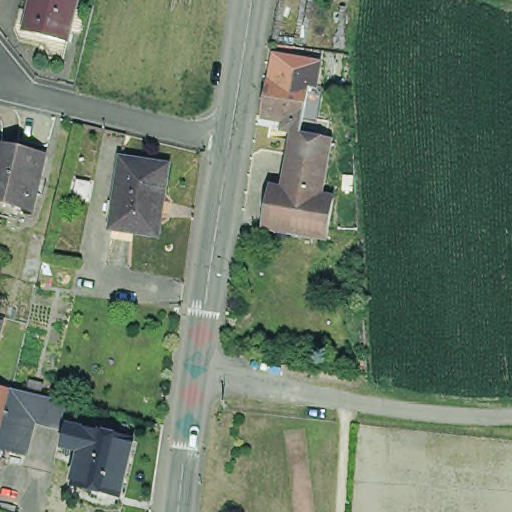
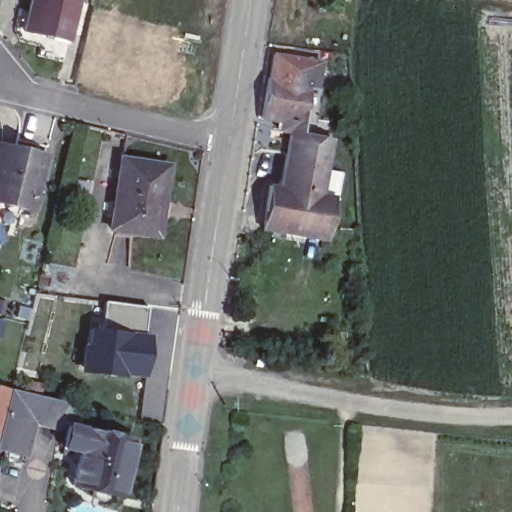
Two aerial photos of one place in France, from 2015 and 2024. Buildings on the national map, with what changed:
unchanged [(28,30),(36,0),(81,0),(71,41),(28,30)]
unchanged [(317,89),(278,82),(282,58),(328,68),(324,92),(316,91),(317,89)]
unchanged [(291,239),(272,236),(274,226),(280,191),(289,192),(299,138),(289,136),(289,133),(287,133),(289,125),(271,122),(278,82),(317,89),(316,91),(309,129),(308,140),(341,145),(331,200),(341,202),(335,237),(334,246),(291,239)]
unchanged [(42,194),(36,193),(32,209),(0,202),(0,144),(45,154),(40,178),(46,179),(42,194)]
unchanged [(166,164),(154,235),(108,227),(118,157),(166,164)]
new [(149,308),(146,337),(150,337),(144,386),(85,377),(89,331),(104,332),(107,304),(149,308)]
new [(9,387),(0,429),(0,386),(9,387)]
unchanged [(65,431),(37,424),(28,459),(0,452),(0,450),(14,392),(71,407),(65,431)]
unchanged [(94,497),(96,490),(75,485),(81,460),(75,458),(78,444),(85,445),(88,429),(137,441),(124,497),(110,494),(109,500),(94,497)]

